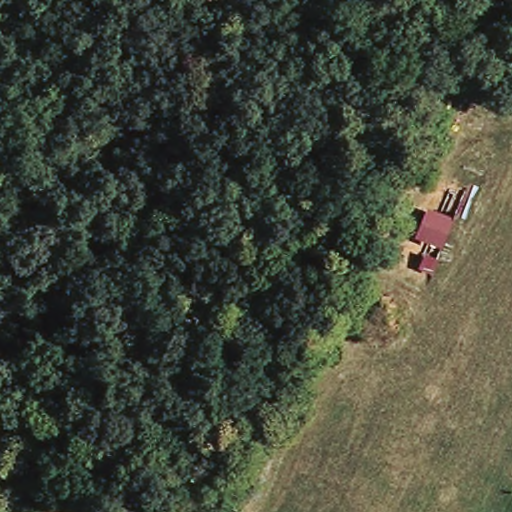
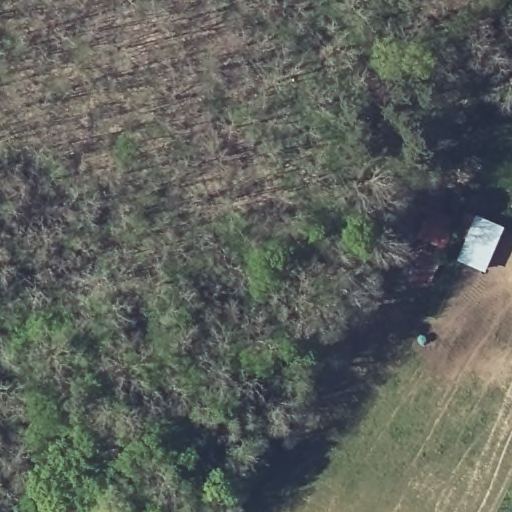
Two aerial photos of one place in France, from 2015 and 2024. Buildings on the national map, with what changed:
new [(505,228),(486,272),(458,260),(466,240),(457,236),(460,230),(457,230),(464,211),(505,228)]

